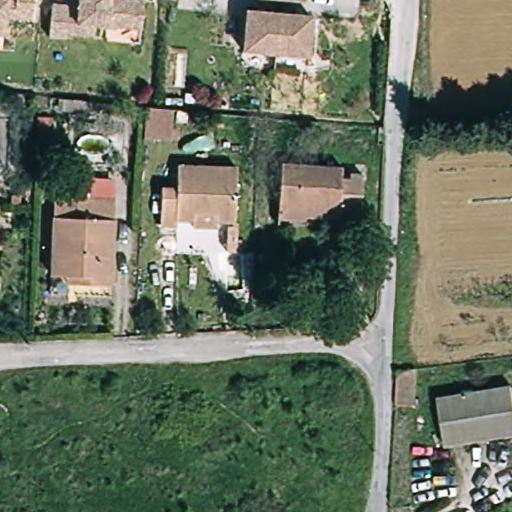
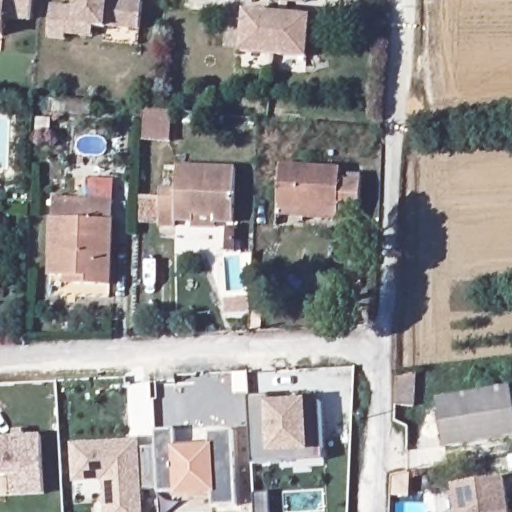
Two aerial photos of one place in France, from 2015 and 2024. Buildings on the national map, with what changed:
unchanged [(0,35),(0,1),(15,2),(16,0),(33,0),(31,20),(4,19),(2,35),(0,35)]
unchanged [(66,38),(50,36),(52,4),(80,7),(80,0),(123,0),(145,3),(141,30),(94,26),(93,36),(66,33),(66,38)]
unchanged [(281,3),(251,0),(252,0),(308,0),(307,5),(281,3)]
unchanged [(238,53),(241,13),(277,17),(274,55),(238,53)]
unchanged [(308,59),(274,55),(277,17),(312,20),(308,59)]
unchanged [(175,143),(147,142),(150,108),(177,110),(175,143)]
unchanged [(214,220),(214,229),(193,229),(193,222),(177,221),(177,230),(161,230),(161,189),(175,189),(177,161),(235,163),(234,222),(214,220)]
unchanged [(361,178),(361,219),(310,218),(310,224),(277,223),(279,169),(335,169),(335,177),(361,178)]
unchanged [(115,280),(70,280),(70,270),(51,269),(52,194),(115,194),(115,280)]
unchanged [(413,402),(397,404),(398,369),(415,368),(413,402)]
unchanged [(512,438),(438,447),(432,399),(512,389),(512,438)]
new [(252,464),(249,399),(267,397),(267,399),(305,398),(305,402),(320,403),(325,460),(252,464)]
new [(208,445),(208,432),(233,431),(237,507),(212,509),(212,494),(175,497),(175,493),(158,494),(158,488),(142,489),(143,512),(104,512),(102,482),(73,484),(71,444),(140,439),(140,449),(155,447),(154,431),(175,429),(175,447),(208,445)]
new [(11,497),(11,476),(0,476),(0,437),(14,436),(13,431),(23,430),(25,436),(40,434),(42,496),(11,497)]
new [(509,471),(511,507),(460,510),(459,474),(509,471)]

